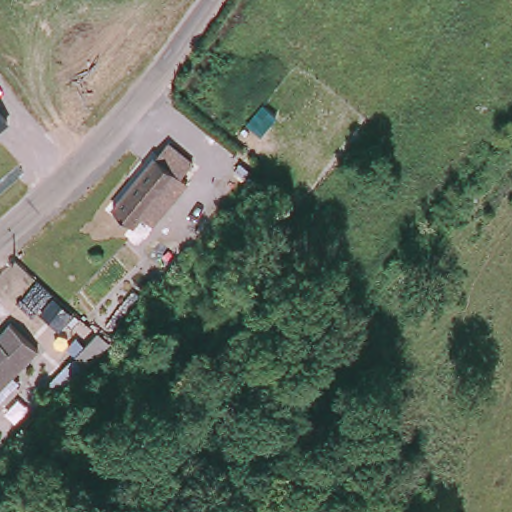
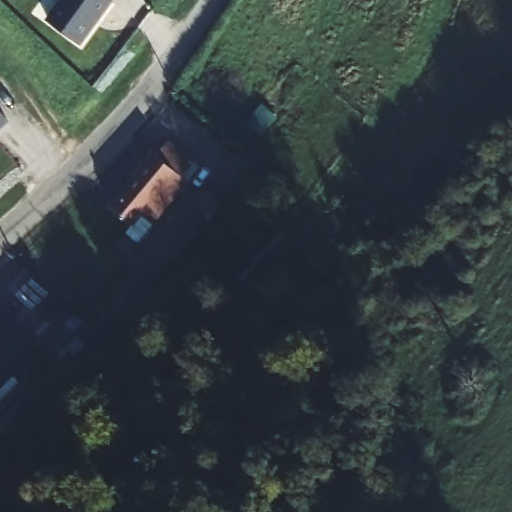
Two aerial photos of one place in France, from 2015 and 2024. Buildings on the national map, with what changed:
new [(81,42),(48,20),(62,0),(110,0),(111,1),(81,42)]
unchanged [(0,127),(0,111),(7,120),(0,127)]
unchanged [(165,142),(192,164),(182,176),(185,184),(151,224),(142,218),(131,226),(110,210),(165,142)]
unchanged [(52,303),(74,322),(61,336),(40,317),(52,303)]
unchanged [(16,323),(36,347),(7,373),(16,385),(0,398),(0,335),(16,323)]
unchanged [(65,369),(95,340),(107,352),(81,380),(65,369)]

